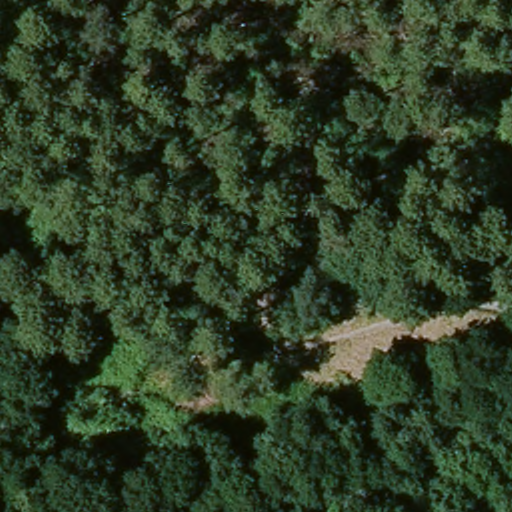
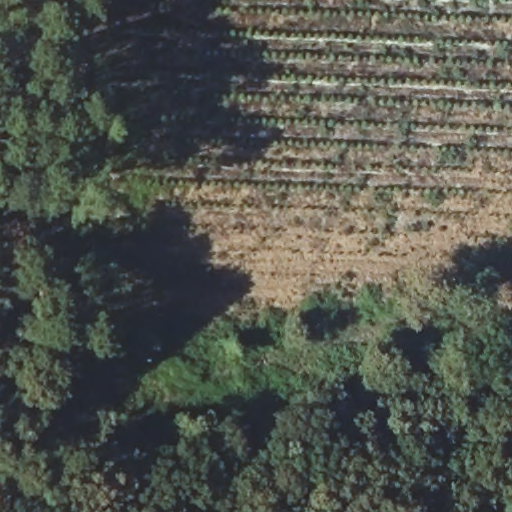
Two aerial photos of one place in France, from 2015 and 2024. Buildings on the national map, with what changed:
[]

